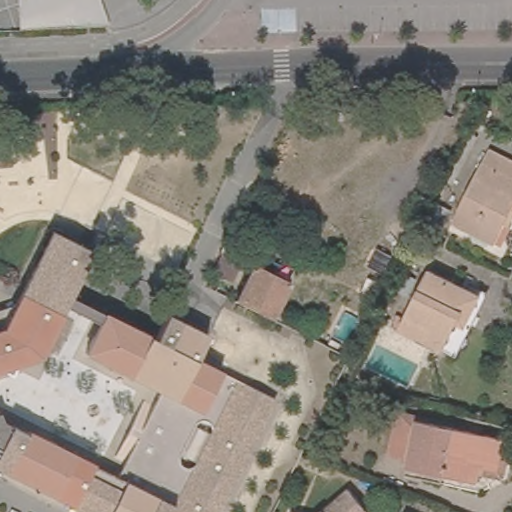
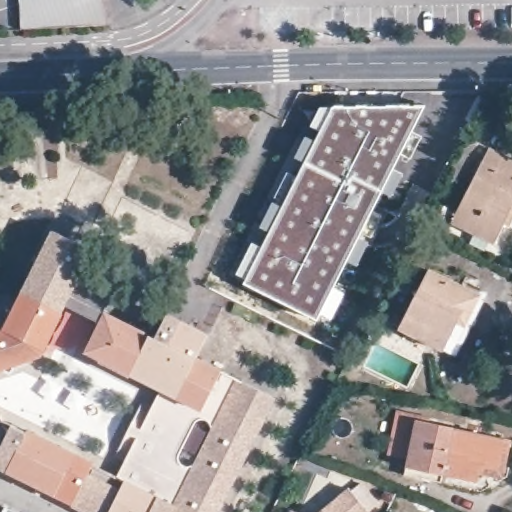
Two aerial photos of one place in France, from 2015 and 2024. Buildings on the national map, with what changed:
unchanged [(13,0),(95,0),(105,30),(14,31),(13,0)]
new [(425,106),(318,320),(245,283),(334,109),(425,106)]
unchanged [(504,223),(495,242),(453,221),(490,149),(512,160),(512,218),(508,225),(504,223)]
unchanged [(427,222),(437,203),(450,208),(441,228),(427,222)]
unchanged [(87,252),(67,295),(100,310),(152,335),(165,316),(204,334),(193,359),(215,370),(271,395),(216,512),(78,512),(70,508),(0,472),(0,423),(87,465),(114,479),(125,455),(115,451),(132,411),(145,418),(155,394),(94,368),(83,357),(97,327),(60,309),(40,357),(9,370),(0,372),(0,327),(45,231),(87,252)]
demolished [(237,296),(254,260),(290,278),(274,313),(237,296)]
unchanged [(450,354),(442,350),(398,329),(428,270),(480,294),(468,315),(450,353),(450,354)]
unchanged [(442,482),(408,475),(410,467),(420,420),(508,439),(502,469),(485,466),(482,482),(445,474),(443,483),(442,482)]
unchanged [(370,506),(364,512),(316,512),(348,482),(370,506)]
unchanged [(297,505),(307,509),(316,512),(294,512),(297,504),(297,505)]

